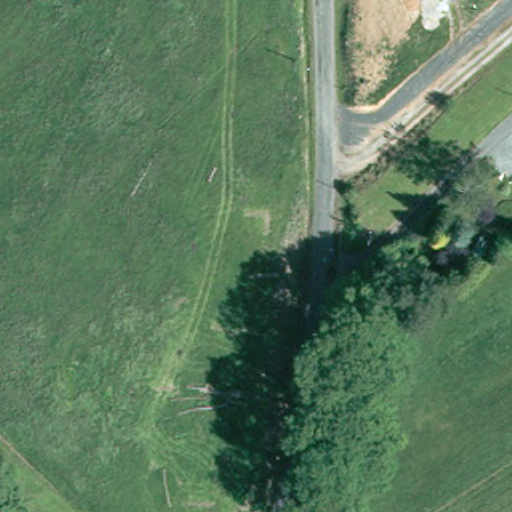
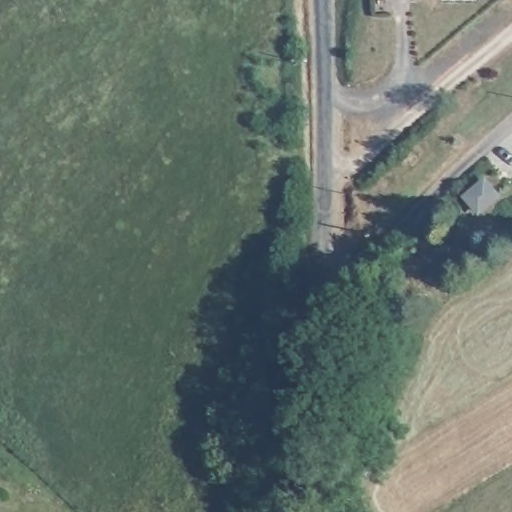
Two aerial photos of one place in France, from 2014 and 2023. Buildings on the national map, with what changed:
new [(485,179),(499,194),(480,210),(467,196),(485,179)]

